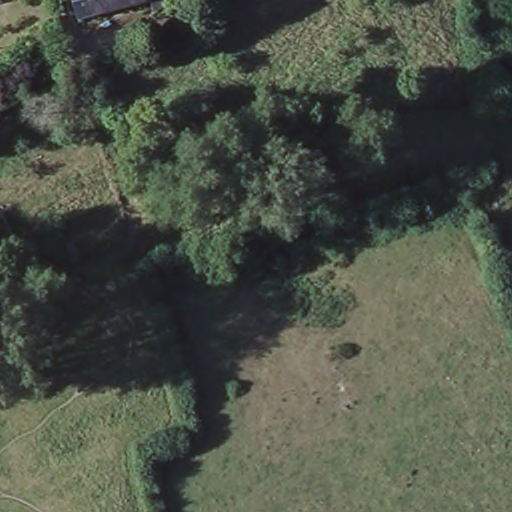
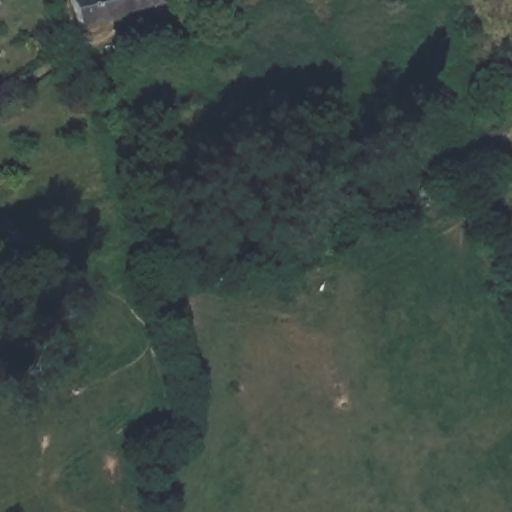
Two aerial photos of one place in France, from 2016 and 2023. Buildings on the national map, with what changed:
unchanged [(142,12),(140,4),(74,22),(68,0),(160,0),(162,7),(142,12)]

